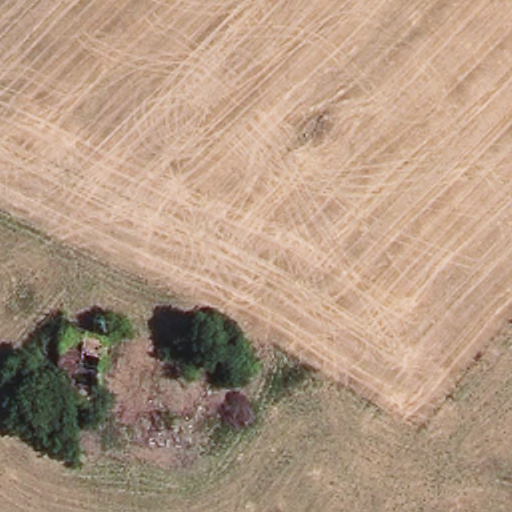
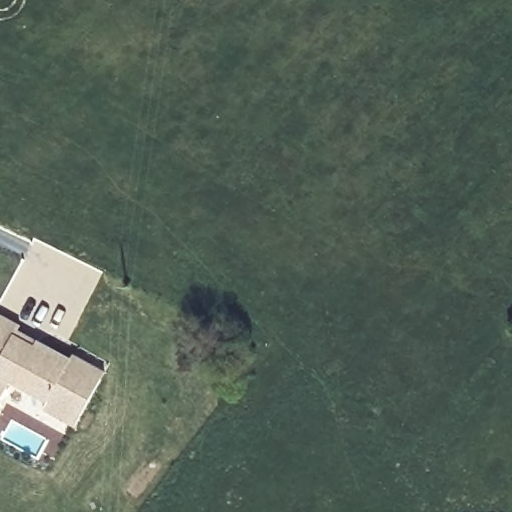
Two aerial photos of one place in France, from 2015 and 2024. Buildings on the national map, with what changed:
new [(11,382),(0,400),(0,314),(21,325),(19,329),(72,359),(75,354),(106,373),(75,427),(47,411),(50,403),(11,382)]
demolished [(104,341),(96,411),(56,405),(65,337),(104,341)]

